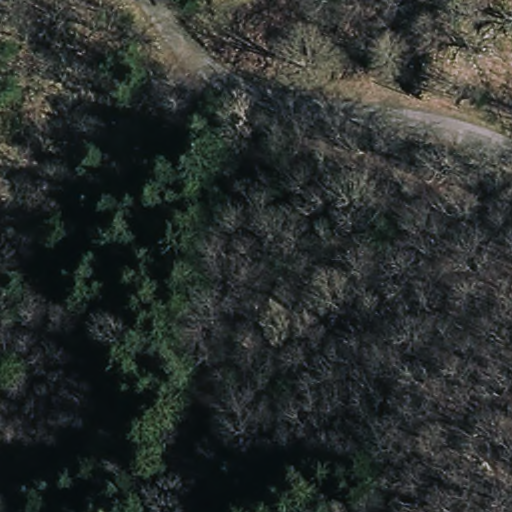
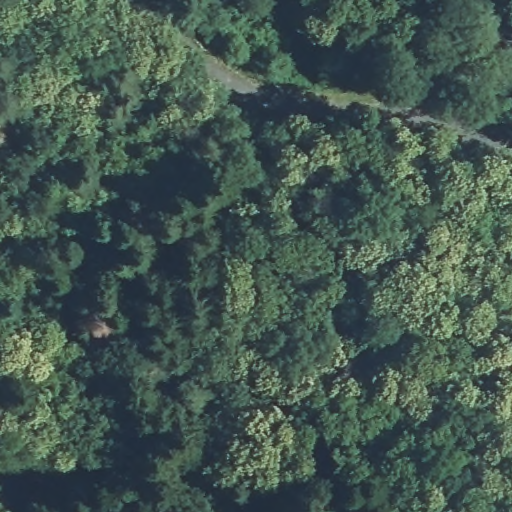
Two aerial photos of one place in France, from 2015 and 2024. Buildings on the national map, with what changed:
unchanged [(98,120),(77,124),(76,104),(97,102),(98,120)]

